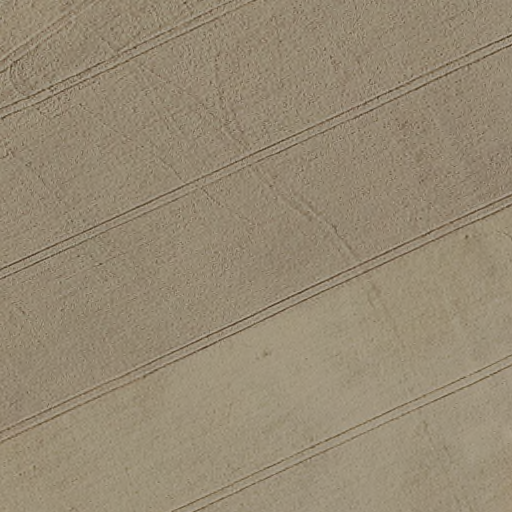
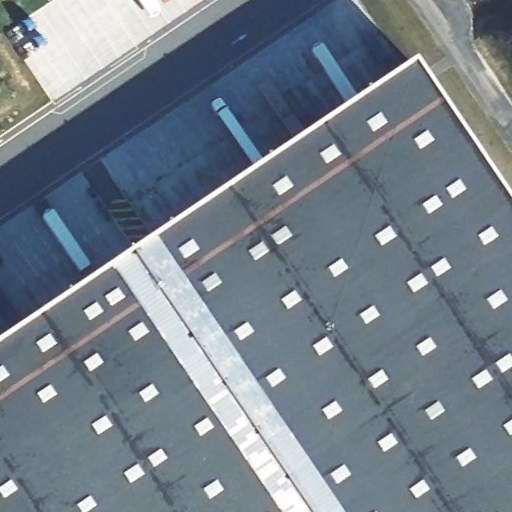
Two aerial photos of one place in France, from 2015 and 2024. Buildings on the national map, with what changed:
new [(512,206),(512,512),(0,512),(0,346),(417,65),(512,206)]

